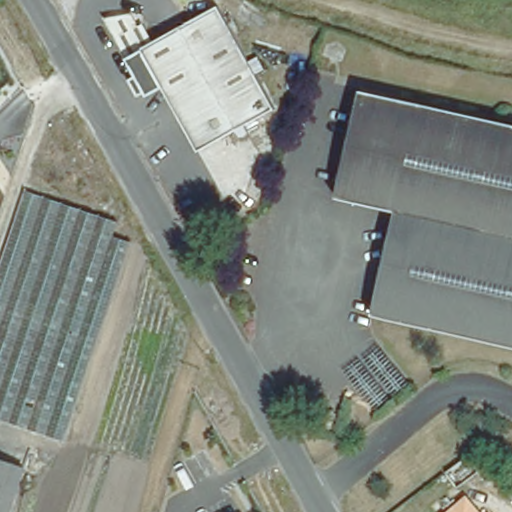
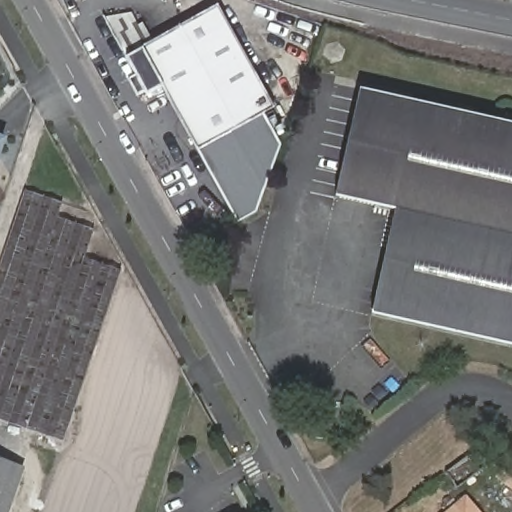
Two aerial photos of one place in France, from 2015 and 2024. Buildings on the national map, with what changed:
unchanged [(273,100),(197,142),(161,80),(146,88),(124,50),(107,18),(138,12),(151,34),(209,0),(217,0),(273,100)]
demolished [(348,56),(345,66),(333,69),(330,66),(323,56),(327,47),(340,44),(348,56)]
unchanged [(396,206),(337,194),(361,85),(393,93),(415,98),(422,100),(446,105),(452,107),(473,111),(512,120),(512,344),(377,314),(396,206)]
new [(194,145),(197,142),(269,102),(274,109),(263,115),(281,146),(255,214),(237,222),(194,145)]
unchanged [(98,215),(117,222),(112,236),(131,243),(124,262),(62,441),(0,420),(0,268),(26,191),(98,215)]
new [(465,456),(477,453),(491,463),(457,487),(445,471),(465,456)]
unchanged [(0,512),(0,459),(22,466),(7,512),(0,512)]
unchanged [(481,512),(451,512),(468,497),(481,512)]

